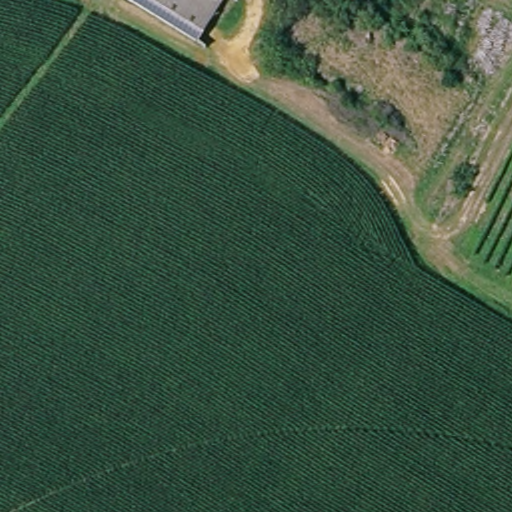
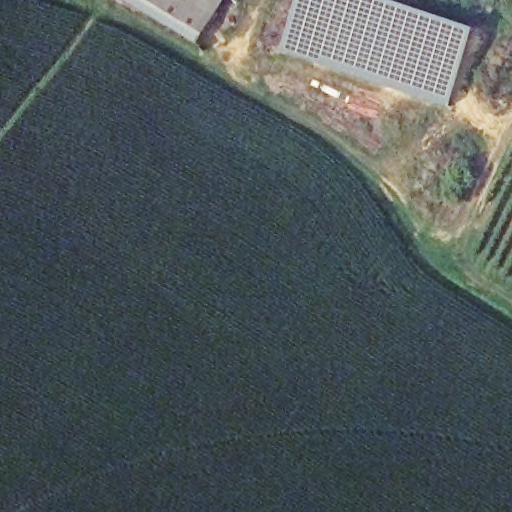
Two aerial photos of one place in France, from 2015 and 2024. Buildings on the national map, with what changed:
unchanged [(203,40),(132,0),(226,0),(203,40)]
new [(299,0),(388,0),(477,30),(452,107),(282,51),(299,0)]

